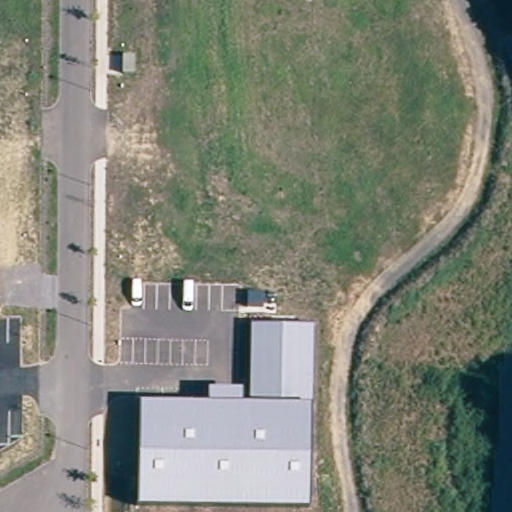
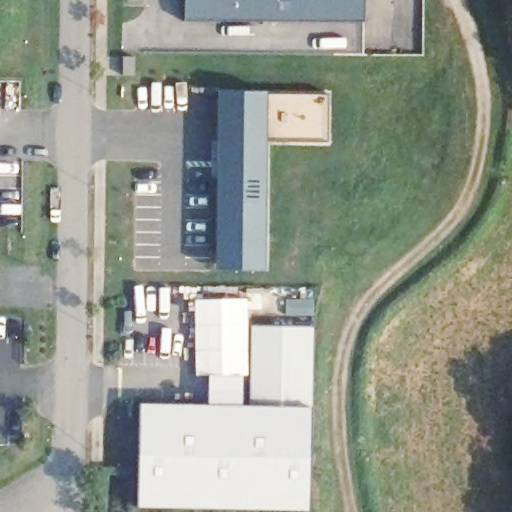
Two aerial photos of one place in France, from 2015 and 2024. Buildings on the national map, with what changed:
new [(187,20),(187,0),(366,0),(366,22),(187,20)]
new [(215,99),(327,101),(326,150),(264,149),(261,268),(223,267),(224,195),(225,148),(215,148),(215,99)]
new [(213,195),(224,195),(223,267),(261,268),(261,278),(211,277),(213,195)]
new [(196,299),(246,298),(248,375),(242,376),(242,390),(207,390),(208,374),(196,374),(196,299)]
unchanged [(312,326),(312,407),(309,408),(308,510),(137,508),(140,403),(207,404),(207,390),(242,390),(241,404),(250,404),(251,324),(312,326)]

